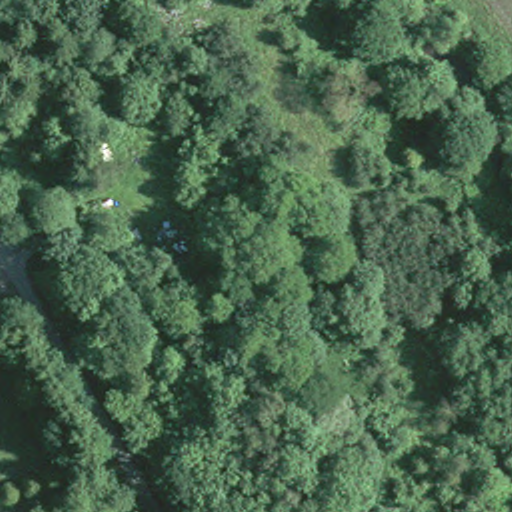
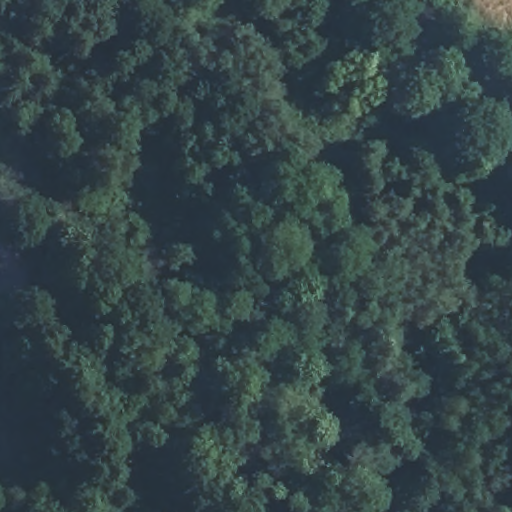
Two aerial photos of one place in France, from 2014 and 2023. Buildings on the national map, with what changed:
unchanged [(357,185),(345,162),(368,151),(380,172),(357,185)]

